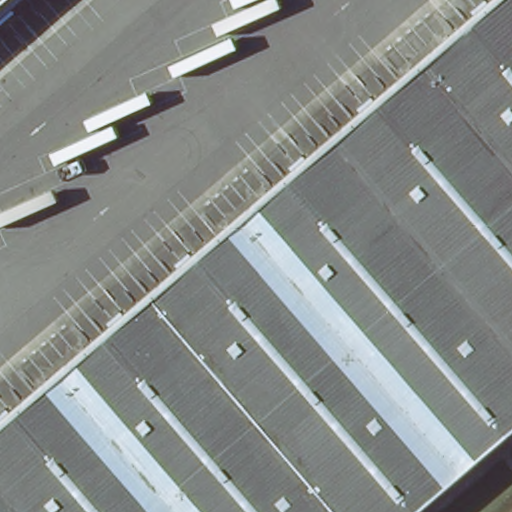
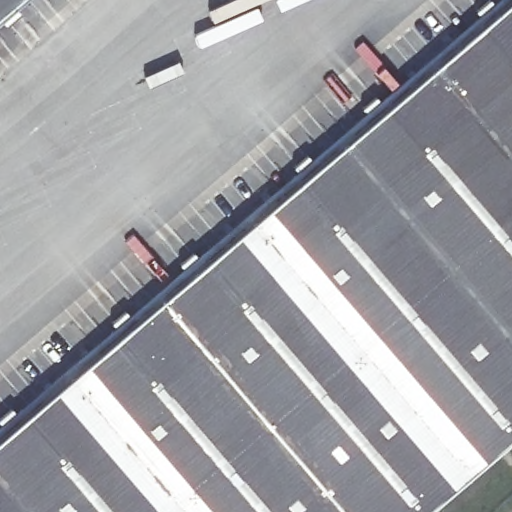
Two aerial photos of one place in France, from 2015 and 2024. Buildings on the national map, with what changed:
unchanged [(509,0),(512,0),(512,436),(423,512),(0,512),(0,435),(509,0)]

